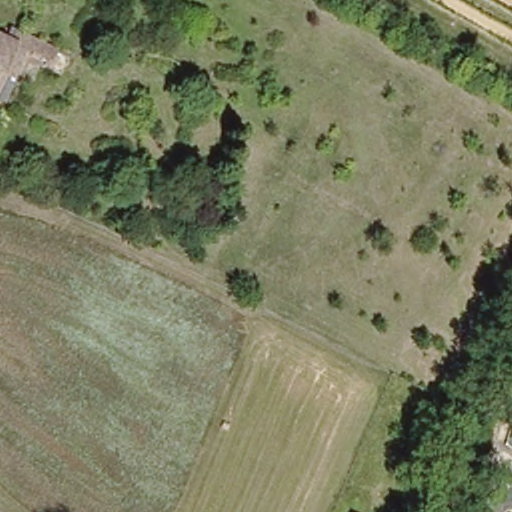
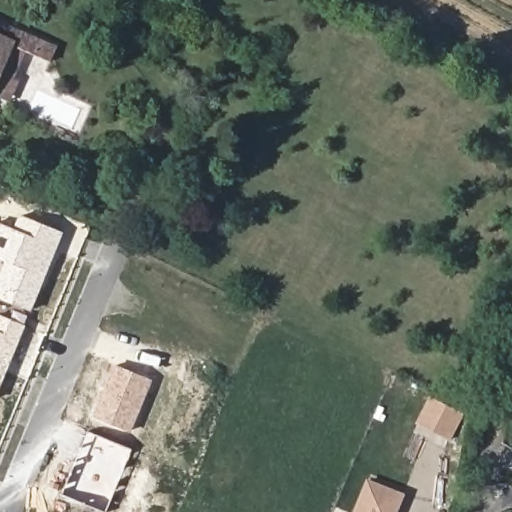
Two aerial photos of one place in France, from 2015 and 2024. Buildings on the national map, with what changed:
unchanged [(9,23),(58,46),(51,63),(28,53),(15,76),(2,74),(0,78),(0,35),(9,23)]
new [(0,298),(0,272),(5,260),(0,258),(0,223),(14,229),(19,215),(64,232),(31,311),(0,298)]
new [(0,388),(0,315),(26,326),(0,388)]
new [(113,363),(153,380),(131,432),(93,417),(113,363)]
new [(106,512),(61,495),(88,431),(133,449),(106,512)]
unchanged [(383,512),(346,512),(351,501),(383,512)]

